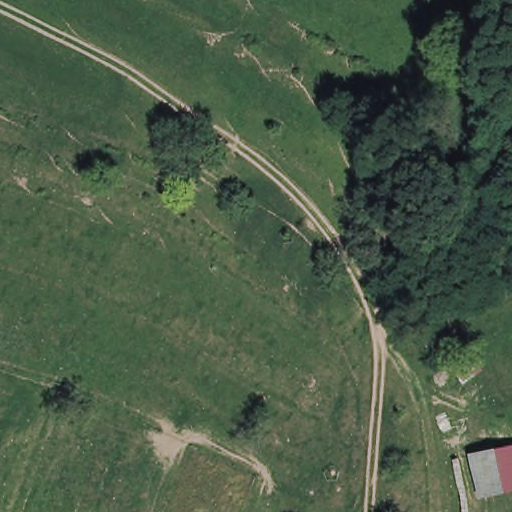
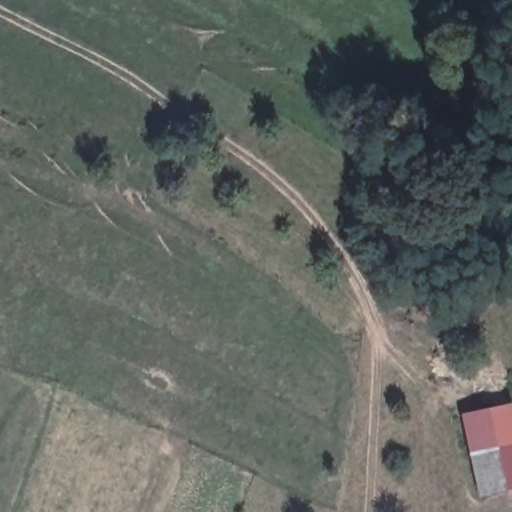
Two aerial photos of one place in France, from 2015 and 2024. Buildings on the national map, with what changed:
new [(512,404),(512,487),(505,487),(497,443),(466,450),(460,414),(512,404)]
unchanged [(497,443),(505,487),(478,489),(466,450),(497,443)]

